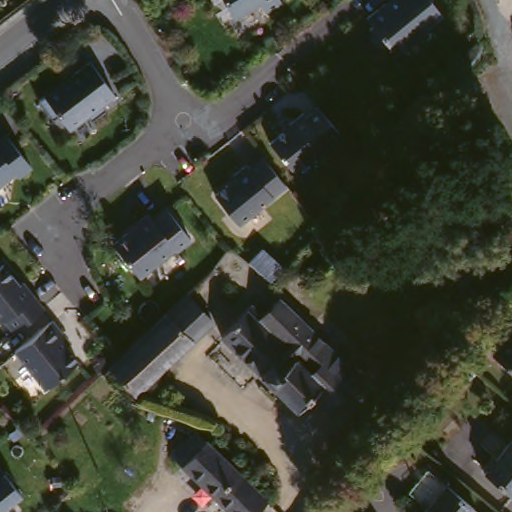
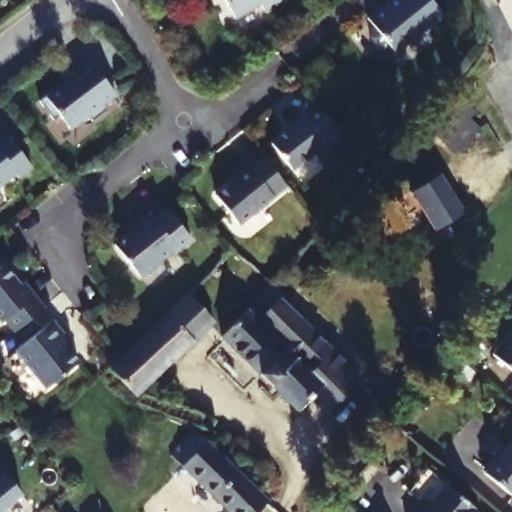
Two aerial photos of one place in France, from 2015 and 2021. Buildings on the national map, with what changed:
unchanged [(241,14),(233,0),(266,0),(241,14)]
unchanged [(272,8),(268,0),(286,0),(272,8)]
unchanged [(444,12),(397,51),(390,43),(387,46),(378,45),(371,36),(372,27),(375,25),(368,17),(385,2),(388,0),(434,0),(444,12)]
unchanged [(95,54),(122,88),(110,98),(115,105),(100,117),(95,110),(77,124),(66,110),(60,115),(44,95),(95,54)]
unchanged [(345,131),(331,140),(335,144),(320,155),(316,149),(295,165),(273,136),(294,120),(292,118),(307,107),(310,111),(323,102),(345,131)]
unchanged [(22,175),(19,170),(2,183),(2,189),(0,191),(0,136),(7,130),(35,165),(22,175)]
unchanged [(240,223),(215,192),(236,176),(233,173),(247,162),(250,165),(263,155),(275,169),(287,185),(240,223)]
new [(439,172),(465,211),(436,231),(411,190),(439,172)]
unchanged [(180,246),(178,244),(144,272),(116,239),(131,227),(132,228),(139,223),(136,220),(150,208),(155,213),(168,202),(194,234),(180,246)]
unchanged [(16,330),(7,318),(4,320),(0,315),(0,268),(7,263),(23,284),(26,281),(46,308),(16,330)]
unchanged [(327,394),(315,381),(297,398),(225,324),(250,299),(271,279),(279,287),(323,332),(347,357),(361,371),(333,399),(327,394)]
unchanged [(220,306),(207,319),(211,323),(182,351),(155,322),(174,304),(197,282),(220,306)]
unchanged [(14,351),(51,320),(63,334),(59,338),(79,363),(46,390),(14,351)]
unchanged [(122,407),(96,379),(155,322),(182,351),(122,407)]
unchanged [(512,322),(512,371),(488,349),(512,322)]
unchanged [(7,363),(0,369),(0,353),(7,363)]
unchanged [(260,503),(251,512),(226,512),(164,452),(187,427),(263,500),(260,503)]
unchanged [(512,434),(512,489),(508,494),(480,470),(512,434)]
unchanged [(26,494),(5,512),(0,512),(0,463),(26,494)]
unchanged [(472,504),(471,506),(478,512),(411,512),(440,477),(472,504)]

